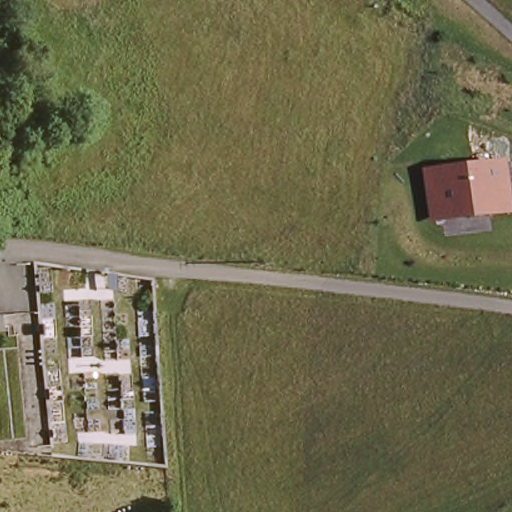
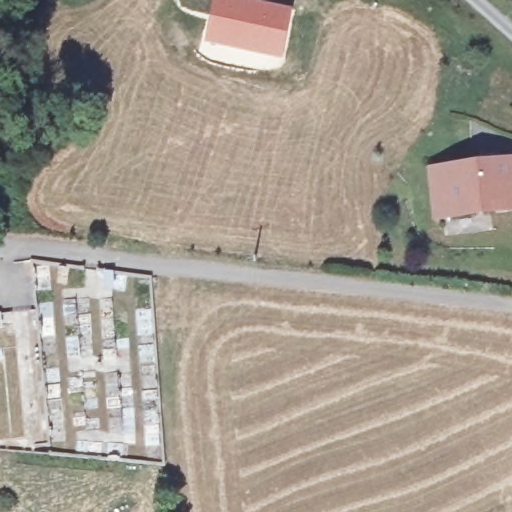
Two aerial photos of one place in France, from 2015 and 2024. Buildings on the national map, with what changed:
new [(199,51),(201,42),(214,0),(252,0),(292,9),(281,62),(266,59),(265,67),(223,60),(199,51)]
unchanged [(434,222),(428,166),(512,159),(512,213),(434,222)]

